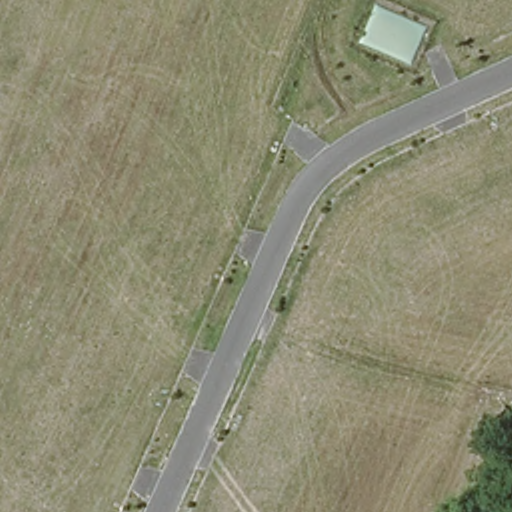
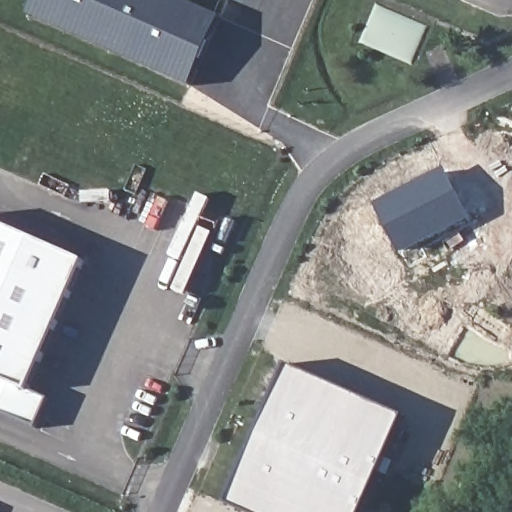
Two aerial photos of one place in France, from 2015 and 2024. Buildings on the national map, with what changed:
new [(186,85),(29,14),(35,0),(182,0),(217,15),(186,85)]
new [(232,2),(226,0),(233,0),(232,2)]
new [(470,217),(400,254),(375,204),(446,167),(470,217)]
new [(35,428),(0,412),(0,225),(85,261),(29,390),(49,400),(35,428)]
new [(286,365),(403,416),(362,512),(245,512),(226,504),(286,365)]

